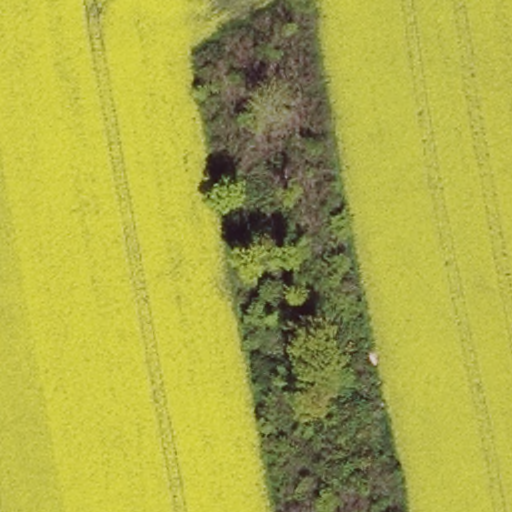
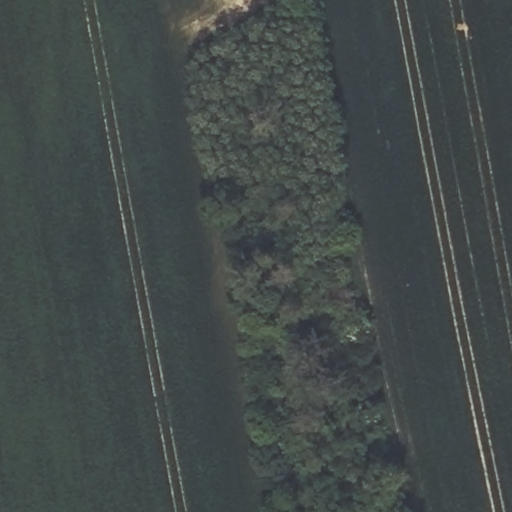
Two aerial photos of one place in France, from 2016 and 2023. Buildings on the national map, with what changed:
[]

